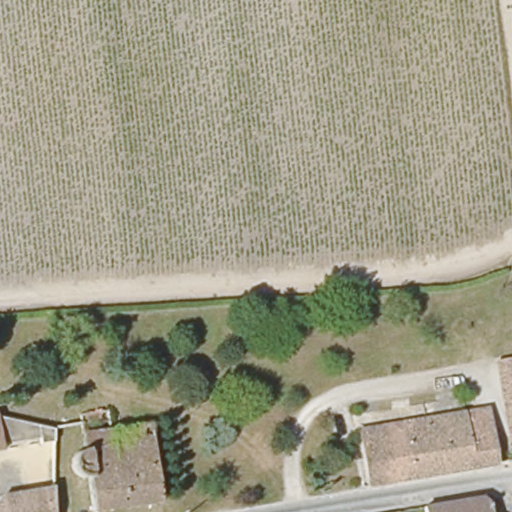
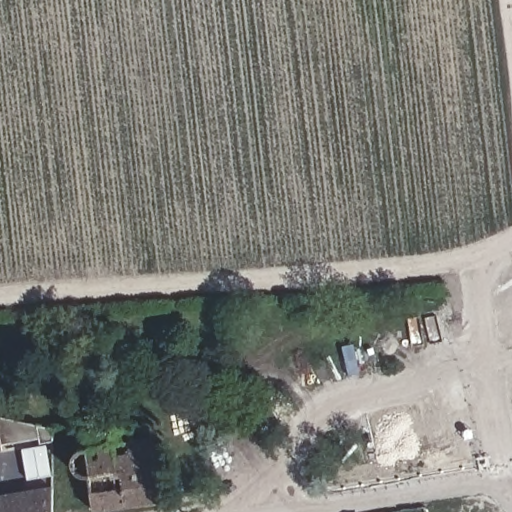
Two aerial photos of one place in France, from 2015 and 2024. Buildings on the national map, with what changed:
demolished [(503,382),(499,362),(512,360),(512,429),(503,382)]
demolished [(411,479),(403,420),(487,405),(496,466),(411,479)]
unchanged [(100,512),(94,512),(90,480),(79,478),(73,463),(75,453),(85,444),(83,419),(101,414),(104,426),(115,423),(116,431),(154,426),(159,506),(100,512)]
unchanged [(44,443),(42,438),(1,444),(2,451),(0,451),(0,416),(53,429),(55,442),(44,443)]
demolished [(370,486),(364,427),(403,420),(411,479),(370,486)]
unchanged [(53,486),(52,512),(0,512),(0,500),(4,494),(53,486)]
demolished [(428,509),(479,500),(494,512),(420,512),(420,511),(428,509)]
unchanged [(420,512),(420,511),(428,509),(429,512),(420,512)]

